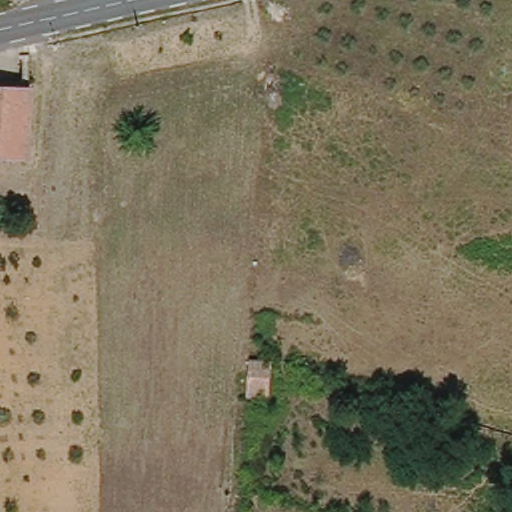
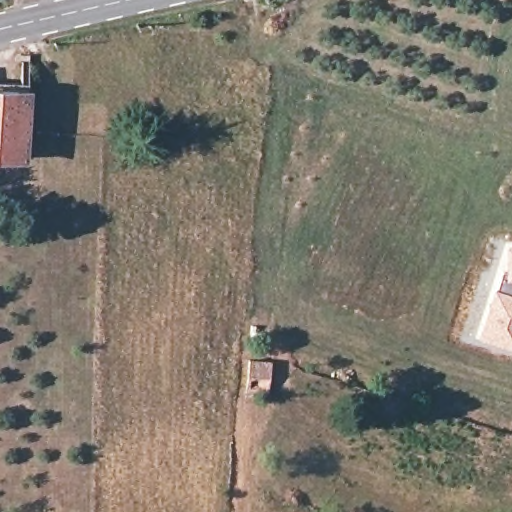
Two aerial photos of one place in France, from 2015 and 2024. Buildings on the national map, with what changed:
unchanged [(21,165),(0,164),(0,83),(30,85),(21,165)]
new [(493,288),(496,289),(501,272),(506,273),(505,245),(512,245),(512,349),(478,338),(493,288)]
unchanged [(241,394),(244,356),(268,356),(268,394),(241,394)]

